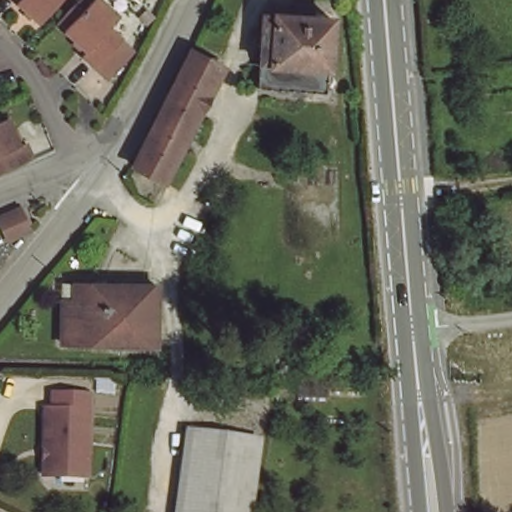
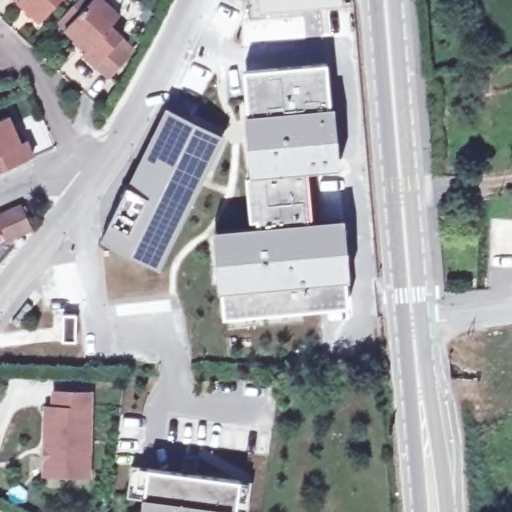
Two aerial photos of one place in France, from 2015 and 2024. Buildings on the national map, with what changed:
unchanged [(40,21),(17,0),(60,0),(40,21)]
unchanged [(110,25),(122,36),(117,42),(131,55),(109,78),(95,65),(83,55),(88,50),(57,21),(77,0),(102,0),(119,16),(110,25)]
new [(341,5),(259,12),(259,0),(341,0),(341,5)]
demolished [(336,11),(331,84),(263,80),(268,7),(336,11)]
demolished [(219,66),(161,178),(133,161),(189,51),(219,66)]
new [(243,78),(326,71),(329,91),(290,95),(291,102),(279,103),(278,96),(251,99),(255,141),(248,142),(243,78)]
new [(279,103),(291,102),(290,95),(329,91),(334,150),(306,153),(319,308),(223,317),(216,242),(257,239),(256,220),(249,220),(245,171),(251,170),(248,142),(255,141),(251,99),(278,96),(279,103)]
unchanged [(18,141),(24,140),(32,157),(5,169),(0,171),(0,119),(8,116),(18,141)]
new [(107,224),(125,185),(128,186),(159,122),(168,126),(170,121),(218,145),(158,268),(110,244),(117,229),(107,224)]
unchanged [(28,231),(4,241),(0,231),(0,215),(16,209),(18,208),(23,220),(28,231)]
demolished [(155,342),(61,340),(63,293),(63,282),(71,282),(156,285),(155,342)]
unchanged [(45,446),(47,406),(54,406),(55,391),(92,392),(89,474),(49,473),(44,473),(45,446)]
demolished [(190,430),(258,440),(253,465),(186,455),(190,430)]
new [(183,455),(197,456),(190,512),(176,512),(178,500),(144,496),(148,467),(181,472),(183,455)]
new [(128,496),(131,465),(148,467),(144,496),(178,500),(176,512),(141,512),(143,498),(128,496)]
new [(251,481),(246,512),(228,510),(228,512),(190,512),(195,474),(251,481)]

